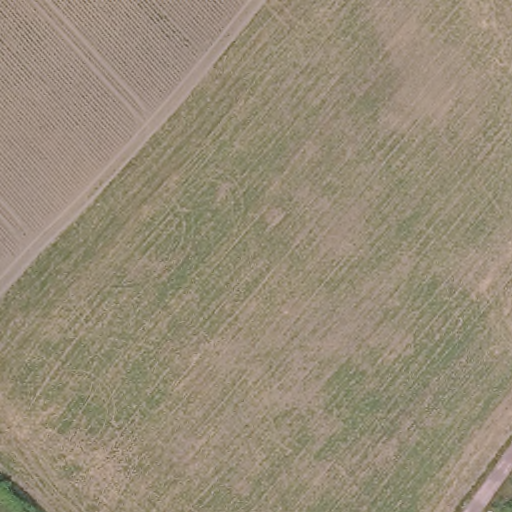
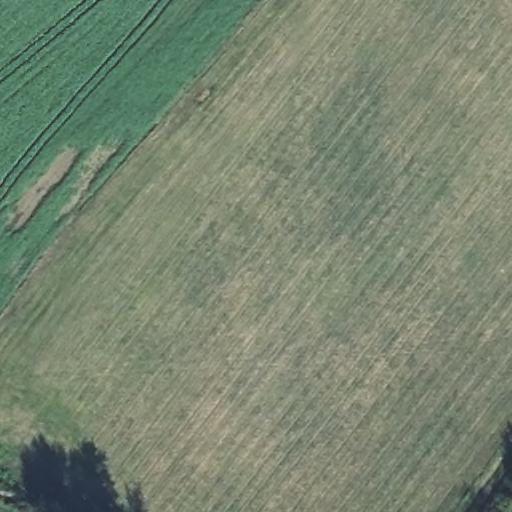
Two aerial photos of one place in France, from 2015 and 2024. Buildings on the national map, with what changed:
[]

